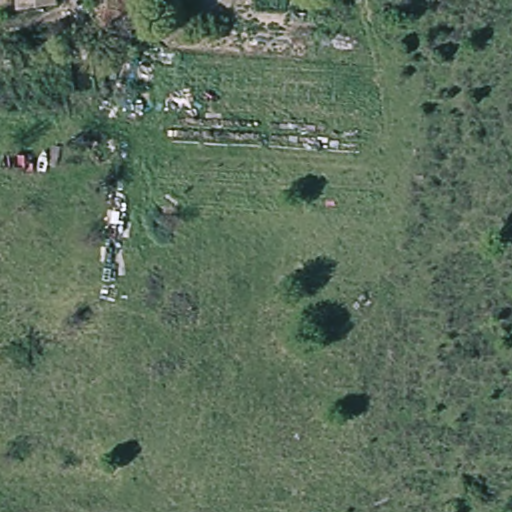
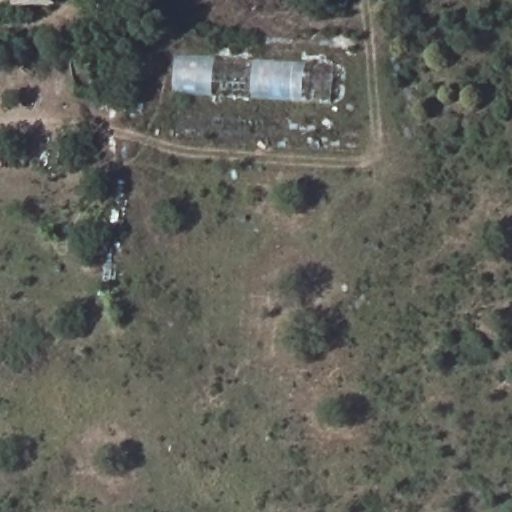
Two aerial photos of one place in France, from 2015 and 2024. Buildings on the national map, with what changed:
unchanged [(0,18),(0,0),(56,0),(58,12),(0,18)]
unchanged [(119,32),(118,21),(105,20),(106,0),(132,0),(131,33),(119,32)]
new [(175,54),(335,64),(331,104),(172,94),(175,54)]

